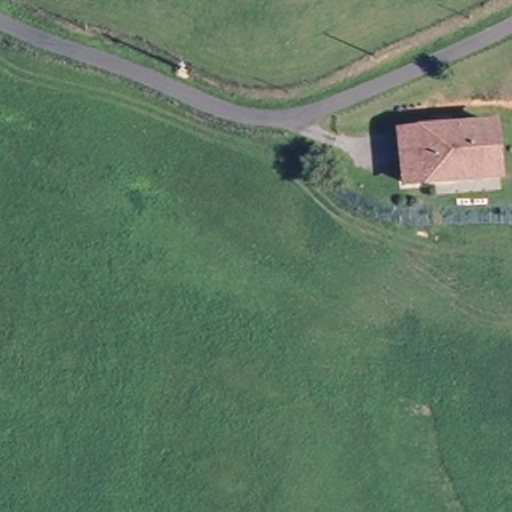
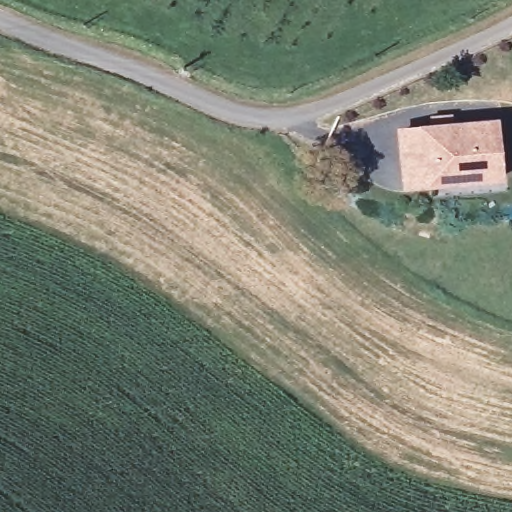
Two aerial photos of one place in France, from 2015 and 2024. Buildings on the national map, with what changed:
unchanged [(396,129),(482,122),(492,121),(496,174),(450,177),(400,182),(396,129)]

